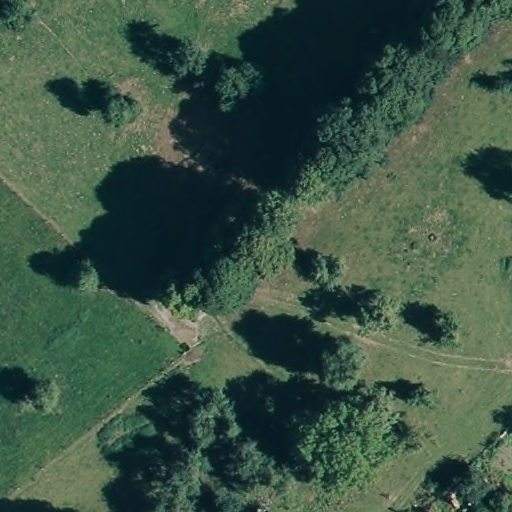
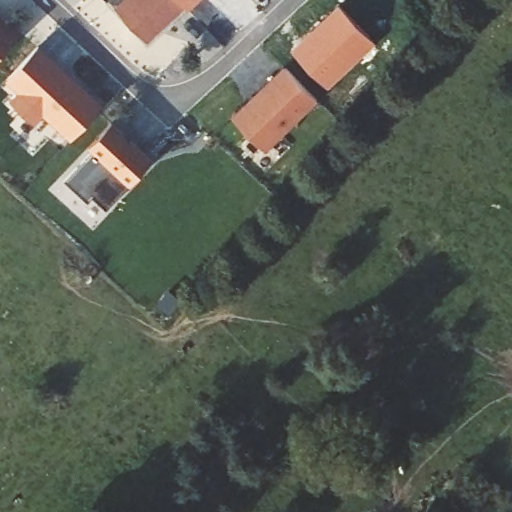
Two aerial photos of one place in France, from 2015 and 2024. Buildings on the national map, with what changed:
new [(115,5),(120,0),(181,0),(186,5),(147,41),(115,5)]
new [(189,9),(186,5),(181,0),(198,0),(189,9)]
new [(291,49),(338,2),(375,42),(328,88),(291,49)]
new [(4,27),(7,24),(19,35),(0,56),(0,23),(4,27)]
new [(43,115),(35,124),(10,100),(18,91),(6,78),(39,44),(104,105),(72,140),(43,115)]
new [(317,102),(264,153),(232,120),(285,69),(317,102)]
new [(150,154),(103,204),(90,190),(85,195),(61,174),(90,144),(85,140),(108,115),(150,154)]
unchanged [(467,512),(426,512),(422,510),(466,460),(495,488),(467,512)]

